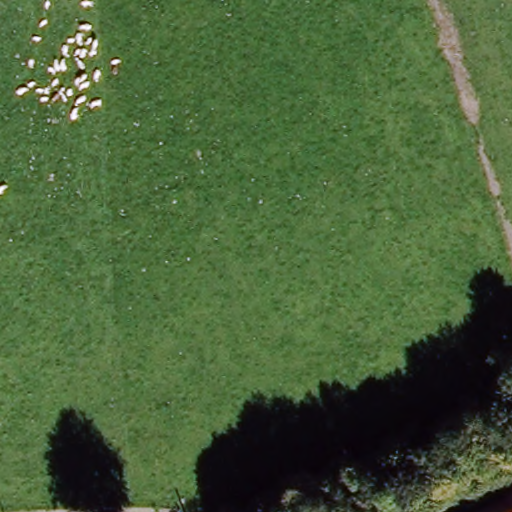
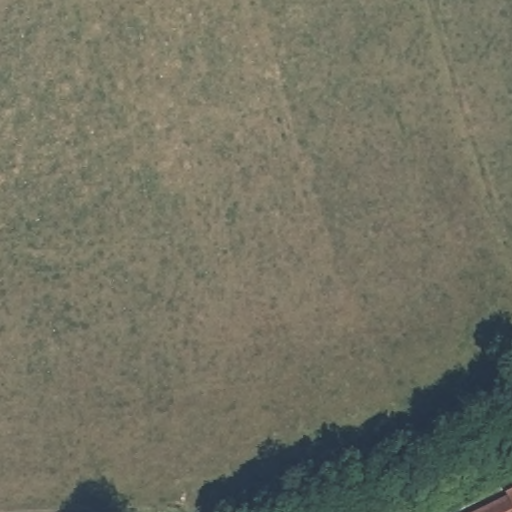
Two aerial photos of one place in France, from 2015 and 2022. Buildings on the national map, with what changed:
unchanged [(512,502),(512,512),(490,512),(512,502)]

